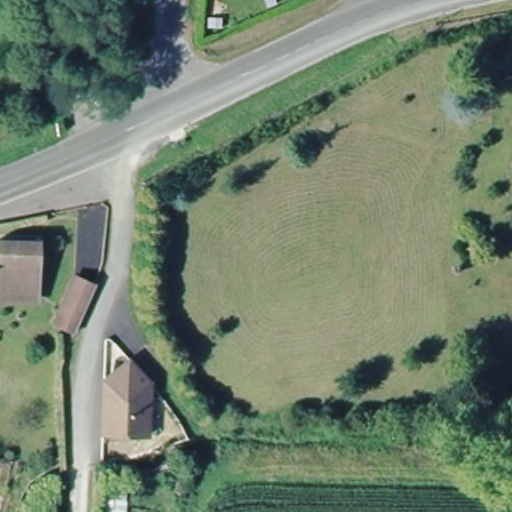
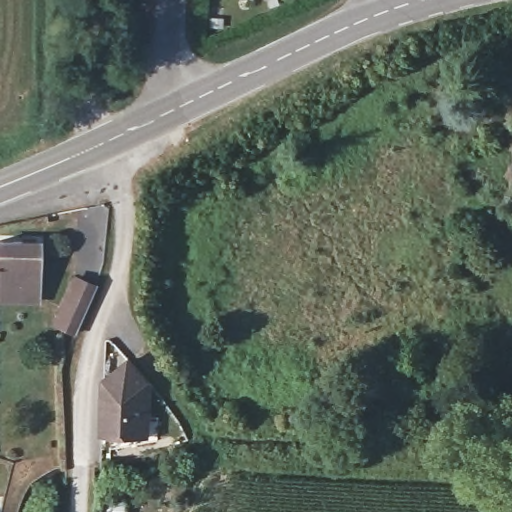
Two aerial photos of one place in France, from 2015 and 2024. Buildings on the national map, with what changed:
unchanged [(0,301),(0,288),(0,268),(2,240),(40,239),(40,284),(40,301),(0,301)]
unchanged [(56,311),(76,275),(95,286),(79,327),(70,340),(55,331),(47,326),(56,311)]
unchanged [(103,423),(102,374),(120,374),(126,354),(143,377),(145,412),(146,420),(103,423)]
unchanged [(132,512),(97,512),(99,500),(134,505),(132,512)]

